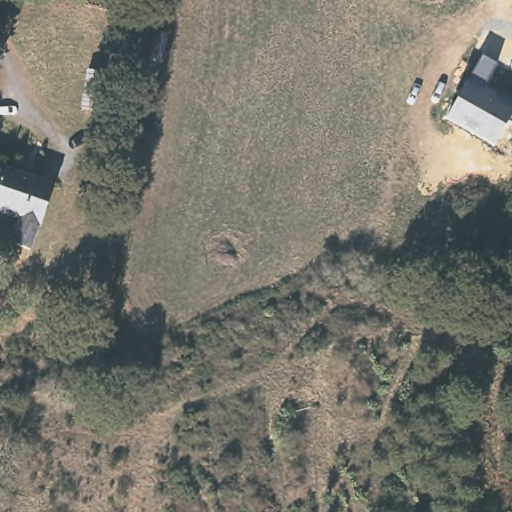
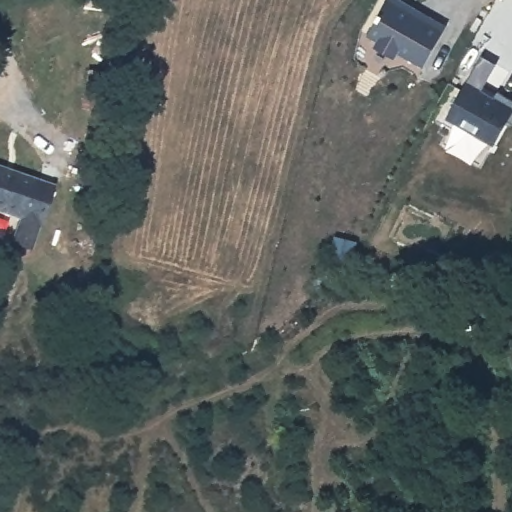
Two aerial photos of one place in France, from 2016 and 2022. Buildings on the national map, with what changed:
unchanged [(121,11),(87,5),(89,0),(123,0),(121,11)]
new [(388,0),(400,0),(416,10),(415,12),(429,20),(430,17),(446,27),(423,67),(398,53),(395,59),(374,46),(377,41),(368,36),(388,0)]
unchanged [(496,64),(481,89),(497,97),(500,92),(512,99),(512,121),(508,120),(494,145),(448,120),(470,82),(483,56),(496,64)]
unchanged [(105,77),(98,110),(81,107),(88,74),(105,77)]
unchanged [(55,182),(31,245),(12,237),(22,213),(0,205),(0,162),(55,182)]

